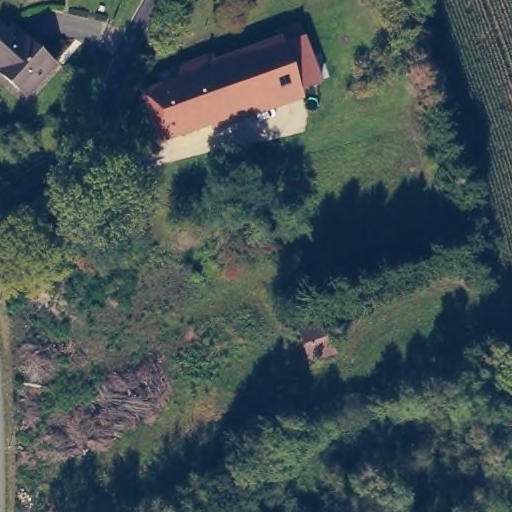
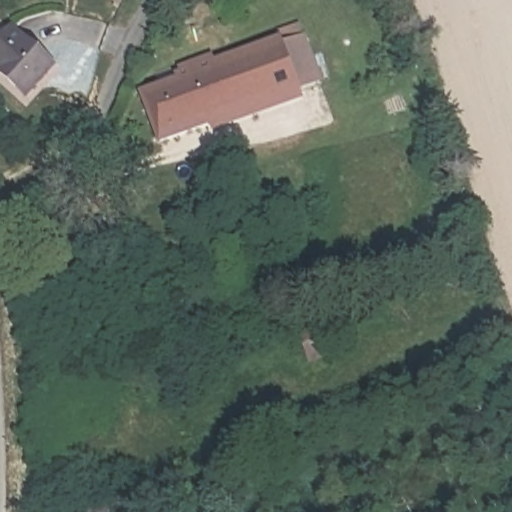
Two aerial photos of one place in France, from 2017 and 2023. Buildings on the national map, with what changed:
unchanged [(279,30),(301,23),(322,83),(300,91),(284,41),(279,30)]
unchanged [(300,91),(159,141),(142,94),(192,76),(188,66),(212,56),(218,67),(284,41),(300,91)]
unchanged [(23,43),(53,66),(26,99),(0,78),(0,69),(23,43)]
unchanged [(310,361),(307,351),(299,329),(325,322),(332,343),(336,354),(310,361)]

